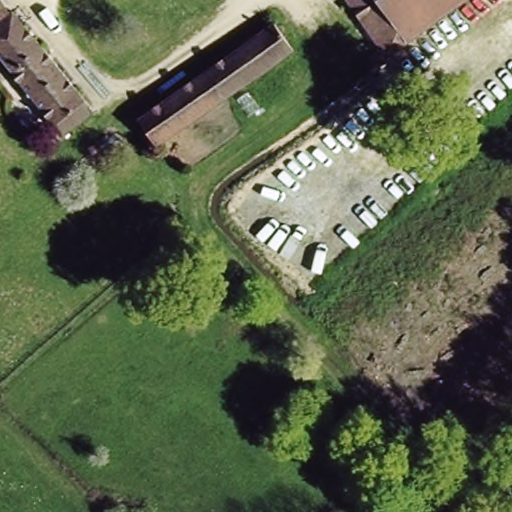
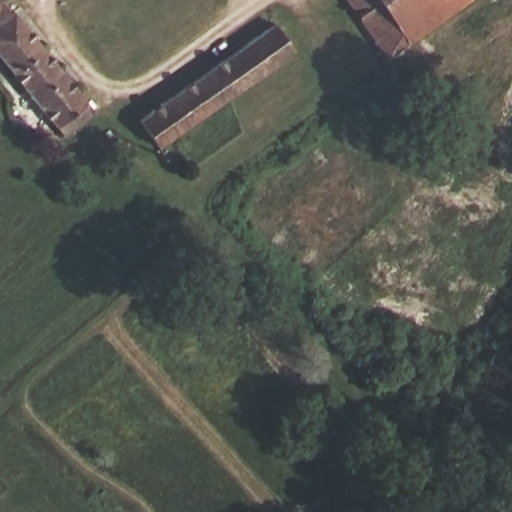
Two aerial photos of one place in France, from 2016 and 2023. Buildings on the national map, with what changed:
unchanged [(88,101),(97,118),(59,143),(0,55),(0,0),(16,0),(88,101)]
unchanged [(410,35),(383,55),(344,0),(383,0),(410,35)]
unchanged [(410,35),(383,0),(460,0),(410,35)]
unchanged [(291,43),(160,138),(140,112),(273,18),(291,43)]

